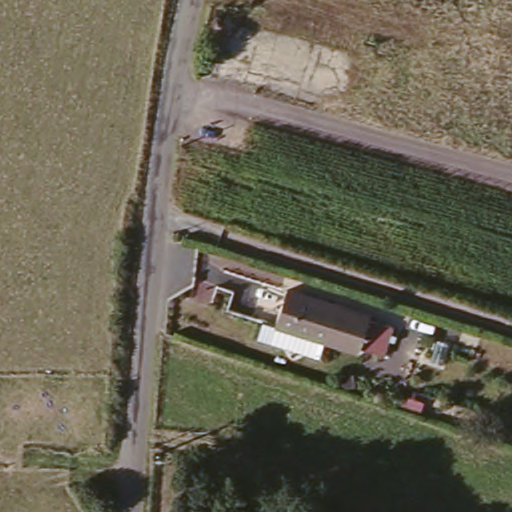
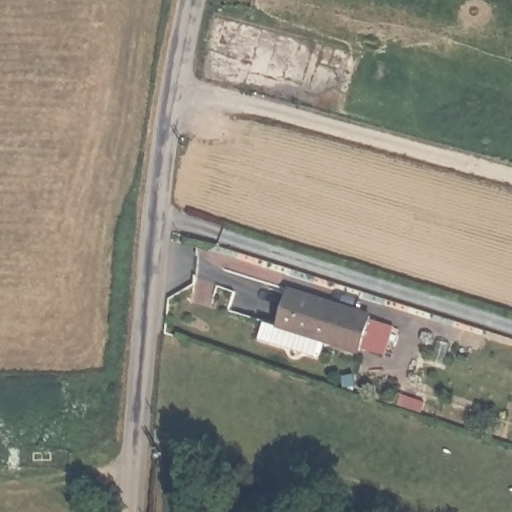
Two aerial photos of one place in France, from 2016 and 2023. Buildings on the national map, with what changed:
unchanged [(384,357),(361,350),(359,352),(329,342),(328,343),(275,327),(287,290),(339,307),(339,308),(370,318),(369,321),(393,328),(384,357)]
unchanged [(258,341),(264,323),(275,327),(270,345),(258,341)]
unchanged [(424,404),(421,413),(411,410),(414,400),(424,404)]

